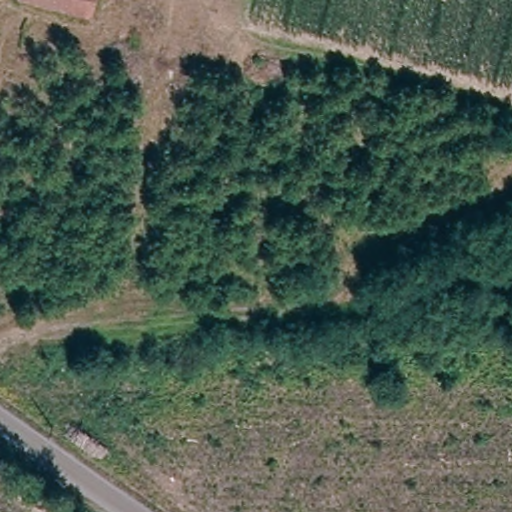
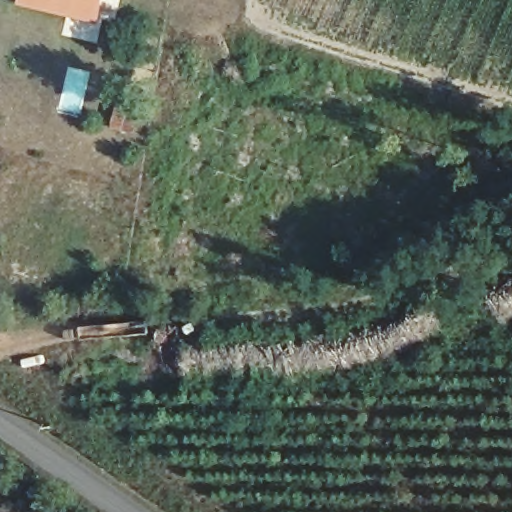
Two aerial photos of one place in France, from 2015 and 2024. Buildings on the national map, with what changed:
unchanged [(21,3),(22,0),(97,0),(91,21),(21,3)]

